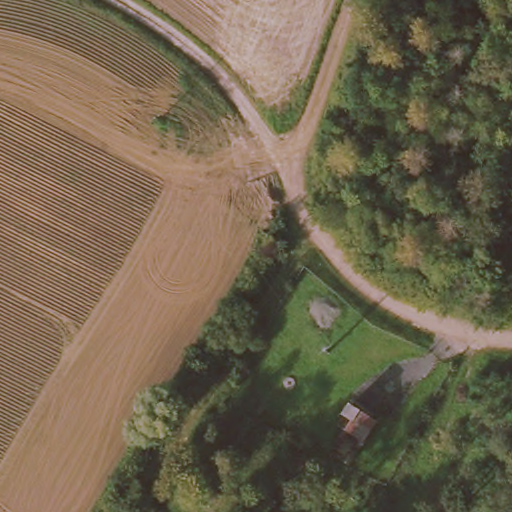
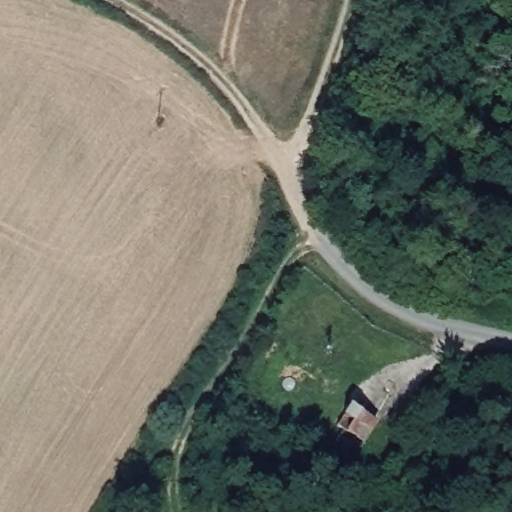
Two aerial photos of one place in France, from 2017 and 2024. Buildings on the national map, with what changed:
unchanged [(358,408),(381,421),(370,441),(347,427),(358,408)]

